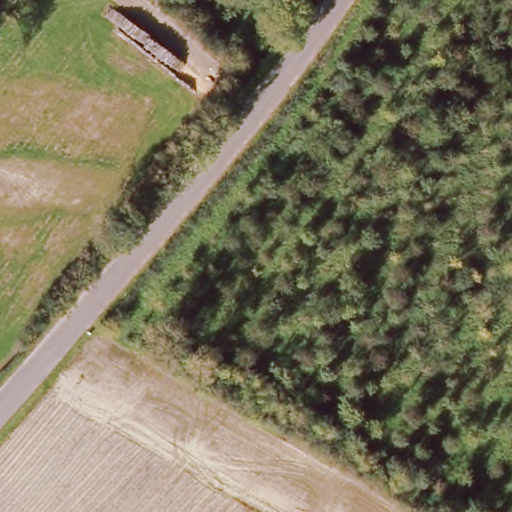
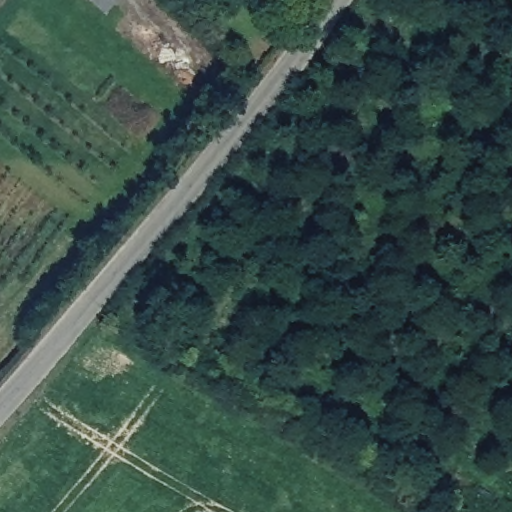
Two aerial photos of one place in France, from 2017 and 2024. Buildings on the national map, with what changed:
[]

